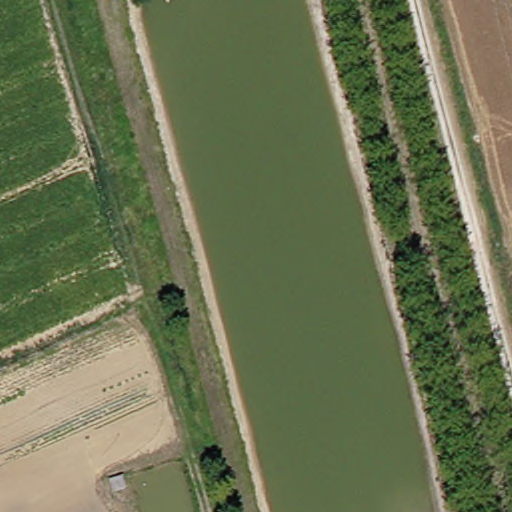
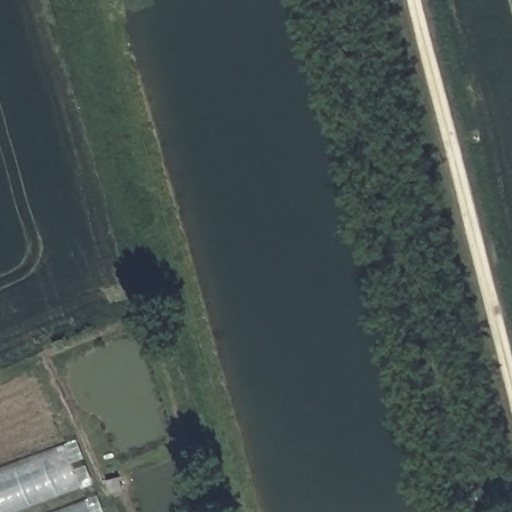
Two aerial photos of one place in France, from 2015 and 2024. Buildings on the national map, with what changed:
new [(0,469),(77,440),(93,484),(17,512),(0,512),(0,469)]
new [(103,512),(52,512),(97,495),(103,512)]

